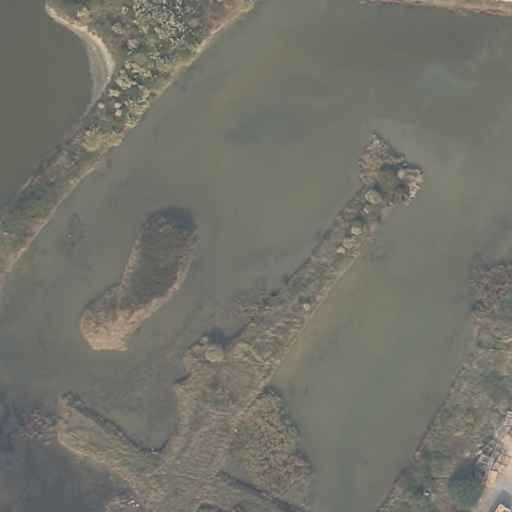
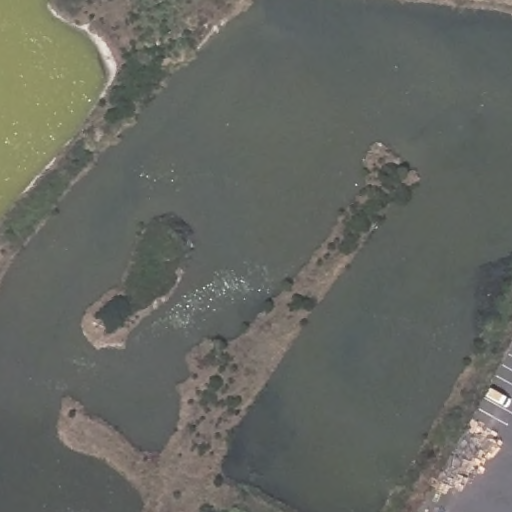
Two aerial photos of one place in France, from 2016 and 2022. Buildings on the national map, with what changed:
[]

